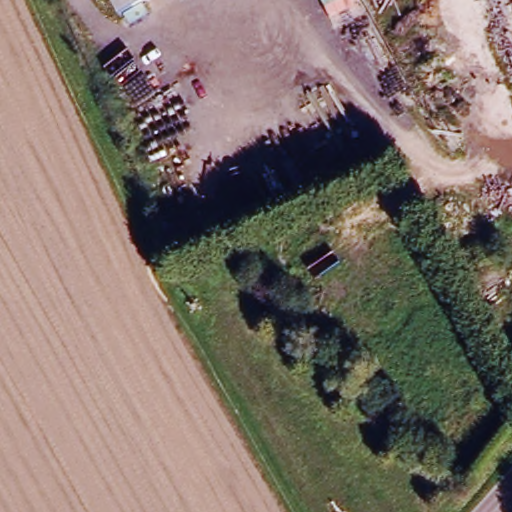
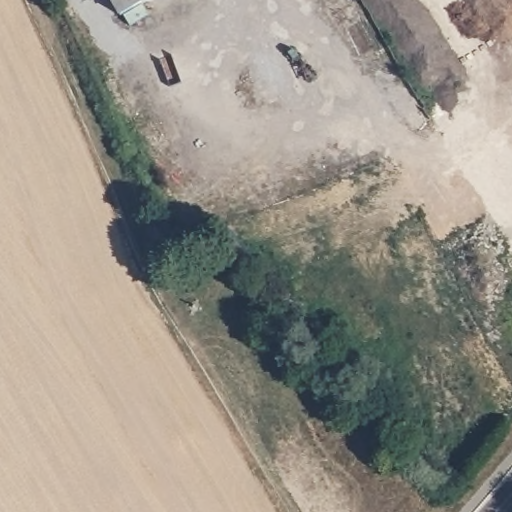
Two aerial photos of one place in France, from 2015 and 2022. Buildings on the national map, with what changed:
unchanged [(123,0),(133,0),(126,4),(123,0)]

